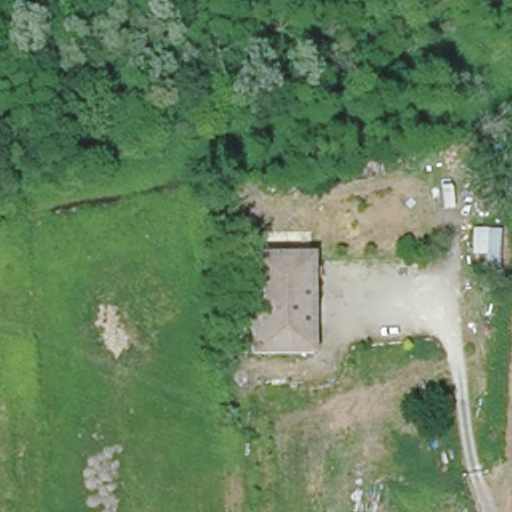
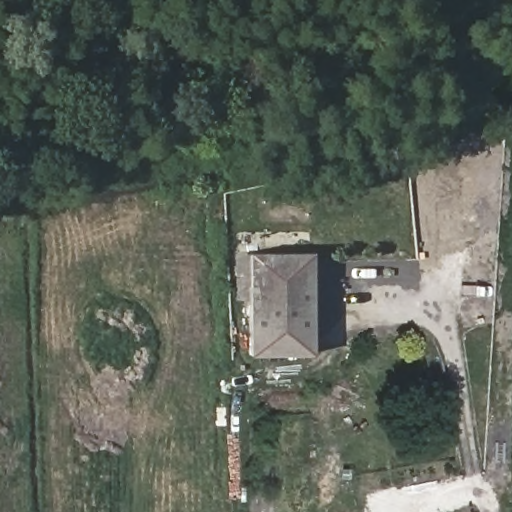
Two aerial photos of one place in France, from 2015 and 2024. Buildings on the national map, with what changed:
unchanged [(312,352),(252,353),(250,254),(310,254),(312,352)]

